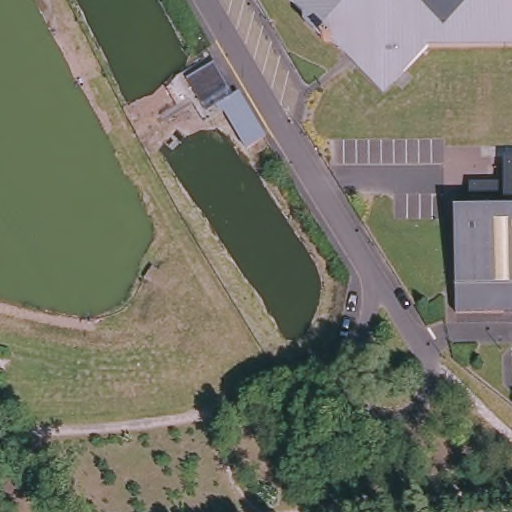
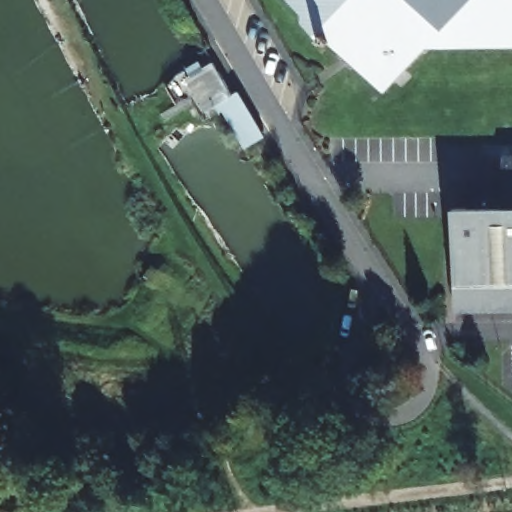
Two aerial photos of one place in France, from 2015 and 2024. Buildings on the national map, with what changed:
unchanged [(382,89),(330,39),(321,39),(303,21),(303,13),(290,0),(512,0),(512,45),(426,46),(382,89)]
unchanged [(250,148),(230,111),(226,112),(222,105),(212,111),(193,76),(220,61),(238,95),(244,91),(270,138),(250,148)]
unchanged [(458,209),(471,210),(471,194),(508,193),(509,166),(512,166),(512,313),(458,313),(458,209)]

